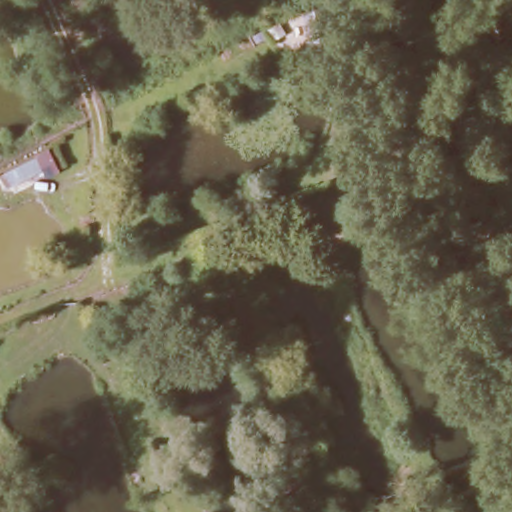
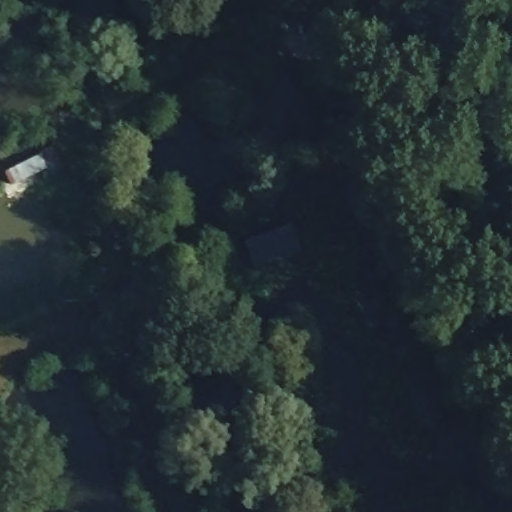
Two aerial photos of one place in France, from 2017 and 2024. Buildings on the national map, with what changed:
unchanged [(245,261),(237,232),(290,216),(298,245),(245,261)]

